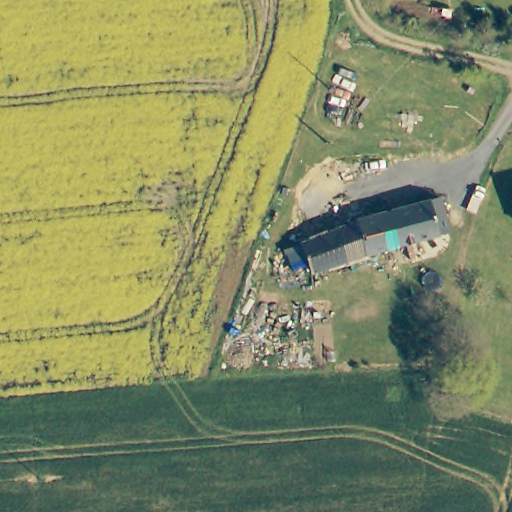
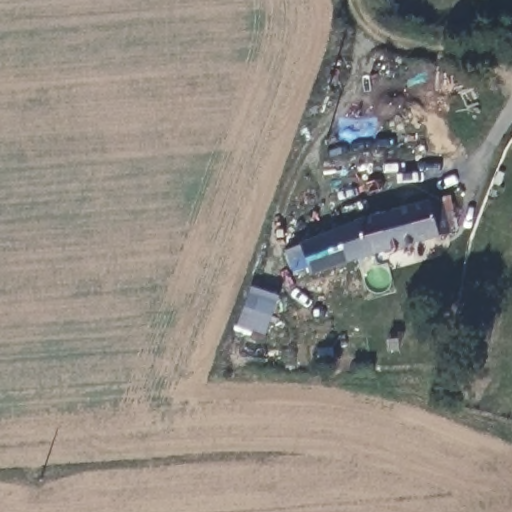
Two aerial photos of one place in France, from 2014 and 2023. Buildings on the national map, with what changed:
unchanged [(441,235),(386,251),(376,216),(431,201),(441,235)]
unchanged [(376,216),(386,251),(304,276),(291,246),(350,223),(376,216)]
new [(265,337),(236,328),(251,286),(280,295),(265,337)]

